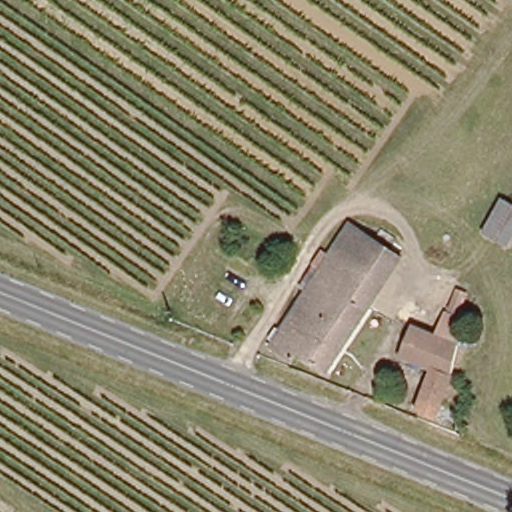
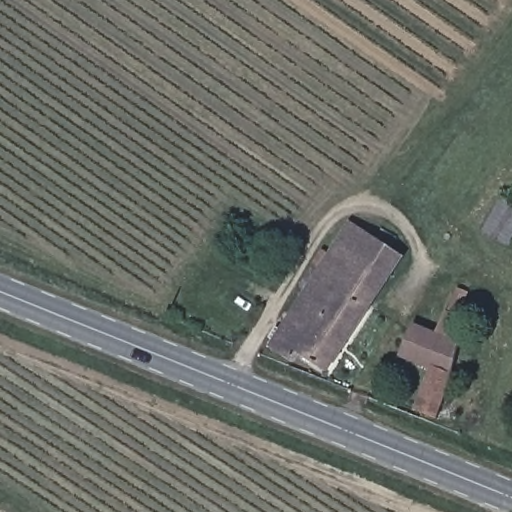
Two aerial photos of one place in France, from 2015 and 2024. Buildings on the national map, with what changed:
unchanged [(512,232),(505,244),(480,227),(499,194),(512,201),(512,232)]
unchanged [(356,222),(407,258),(392,275),(343,238),(356,222)]
unchanged [(331,255),(343,238),(392,275),(317,371),(298,355),(290,365),(263,343),(310,284),(302,279),(317,261),(324,249),(331,255)]
unchanged [(472,292),(465,306),(452,299),(460,285),(472,292)]
unchanged [(429,417),(415,411),(431,368),(398,355),(410,325),(441,337),(449,321),(468,330),(437,411),(430,407),(429,417)]

